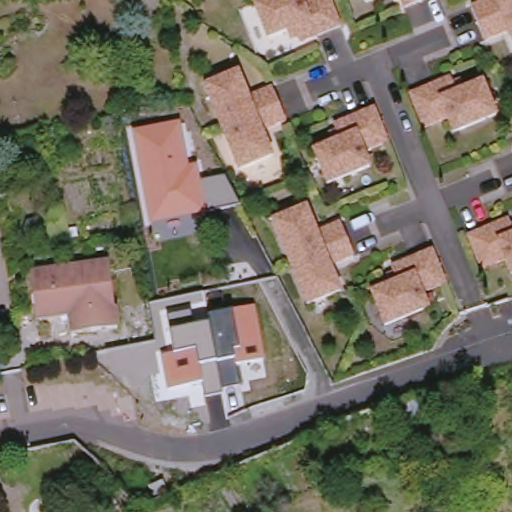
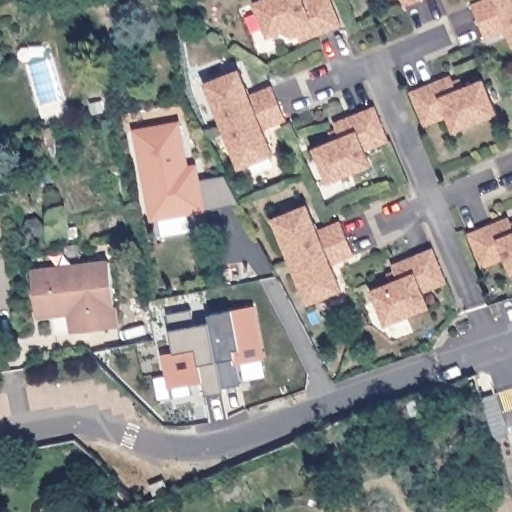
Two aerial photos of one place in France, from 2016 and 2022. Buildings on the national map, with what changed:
unchanged [(305,42),(302,32),(295,35),(292,29),(273,37),(260,3),(268,0),(308,0),(308,1),(311,0),(336,0),(346,25),(305,42)]
unchanged [(401,0),(420,0),(404,6),(401,0)]
unchanged [(488,0),(512,0),(512,9),(483,20),(477,5),(488,0)]
unchanged [(490,39),(483,20),(512,9),(512,30),(490,39)]
unchanged [(279,103),(224,126),(217,109),(215,110),(205,84),(238,70),(247,90),(245,91),(247,96),(272,86),(279,103)]
unchanged [(498,118),(455,136),(450,121),(427,130),(425,131),(412,97),(452,80),(456,90),(463,87),(465,92),(485,84),(498,118)]
unchanged [(286,120),(260,130),(263,135),(265,135),(273,155),(239,168),(228,142),(230,142),(224,126),(279,103),(286,120)]
unchanged [(390,140),(365,150),(372,165),(328,182),(315,148),(334,141),(332,135),(339,132),(335,122),(376,106),(390,140)]
unchanged [(180,121),(188,166),(197,165),(200,182),(223,177),(240,203),(203,208),(205,213),(148,222),(132,131),(180,121)]
unchanged [(347,238),(292,261),(286,244),(284,245),(273,219),(307,205),(315,225),(313,226),(315,231),(340,221),(347,238)]
unchanged [(508,263),(483,272),(470,238),(510,222),(512,226),(512,274),(508,263)]
unchanged [(355,255),(330,265),(332,271),(333,270),(342,290),(308,304),(297,278),(299,277),(292,261),(347,238),(355,255)]
unchanged [(425,292),(430,306),(387,324),(373,290),(392,283),(390,277),(397,274),(393,264),(435,248),(448,282),(425,292)]
unchanged [(67,313),(37,317),(30,272),(110,262),(118,327),(92,330),(70,333),(67,313)]
unchanged [(239,386),(222,388),(223,393),(205,396),(202,382),(167,389),(162,355),(174,354),(171,330),(169,316),(190,311),(193,326),(210,323),(208,316),(235,311),(255,307),(263,359),(235,364),(239,386)]
unchanged [(167,490),(154,495),(150,485),(163,480),(167,490)]

